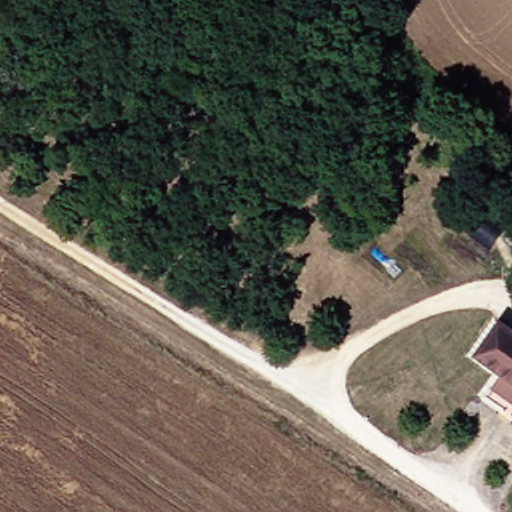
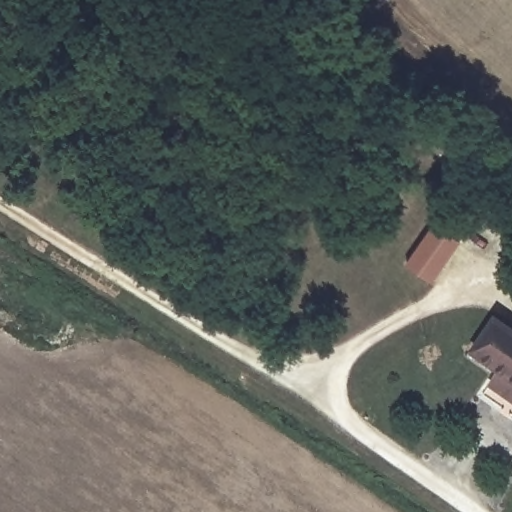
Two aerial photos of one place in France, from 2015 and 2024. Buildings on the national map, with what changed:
new [(435,283),(407,264),(436,222),(463,241),(435,283)]
unchanged [(500,389),(510,376),(482,356),(507,321),(512,325),(512,398),(500,389)]

